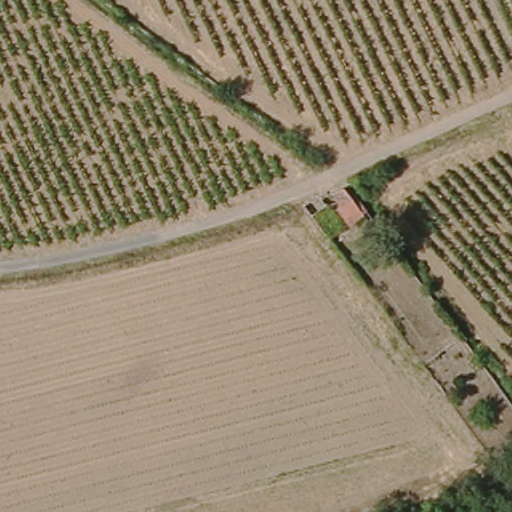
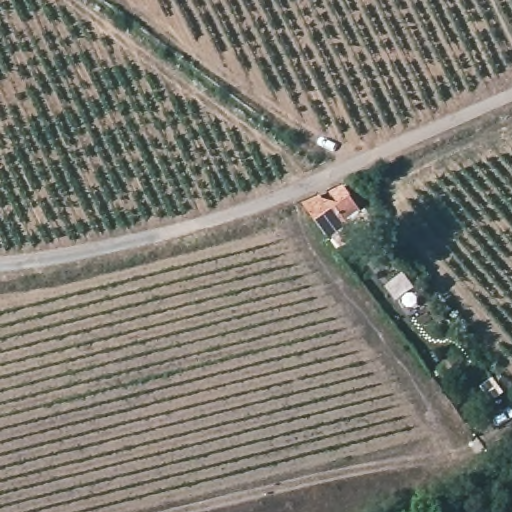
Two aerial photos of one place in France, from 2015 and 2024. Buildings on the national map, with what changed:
unchanged [(327,189),(341,184),(366,217),(342,229),(329,210),(336,206),(327,189)]

